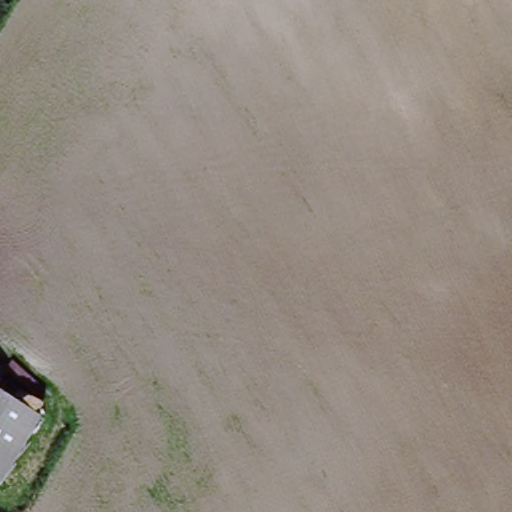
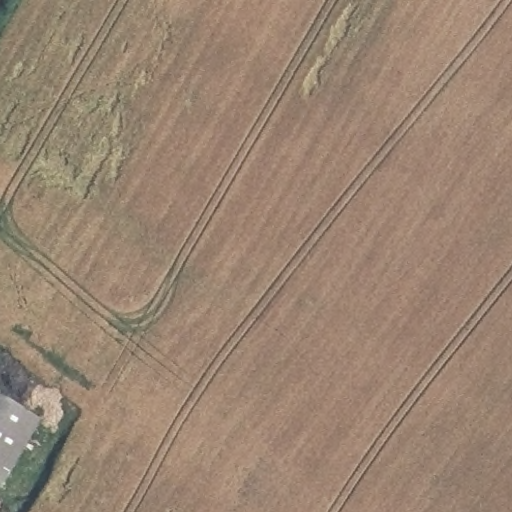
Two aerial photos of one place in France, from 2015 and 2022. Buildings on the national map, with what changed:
unchanged [(0,485),(0,397),(39,420),(0,485)]

